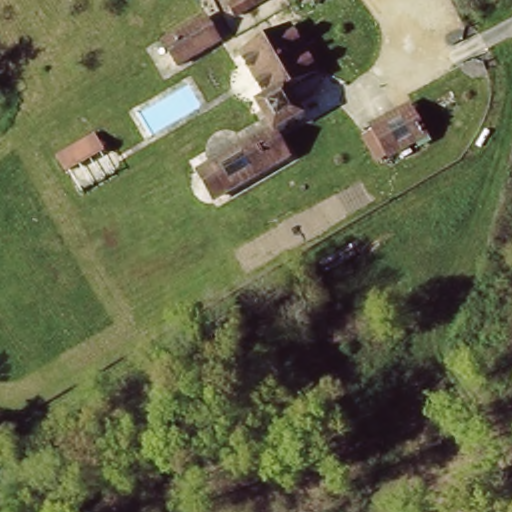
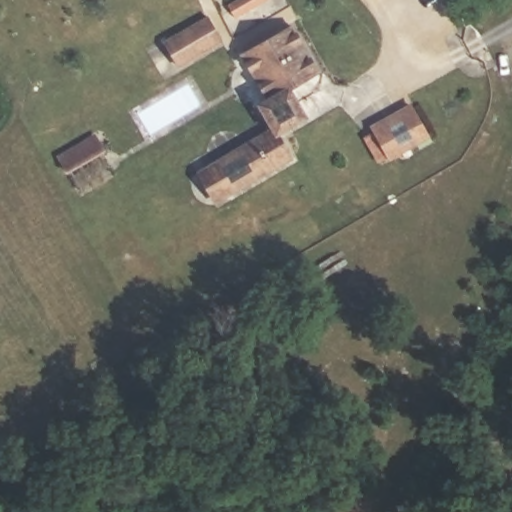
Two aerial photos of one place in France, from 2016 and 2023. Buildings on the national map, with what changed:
unchanged [(275,0),(216,36),(221,45),(179,71),(166,51),(248,0),(275,0)]
unchanged [(241,59),(287,30),(317,77),(291,94),(308,121),(274,142),(281,155),(266,163),(251,136),(241,116),(266,103),(241,59)]
unchanged [(374,134),(412,103),(432,126),(391,156),(374,134)]
unchanged [(103,132),(115,158),(69,184),(58,156),(103,132)]
unchanged [(266,163),(213,192),(199,169),(251,136),(266,163)]

